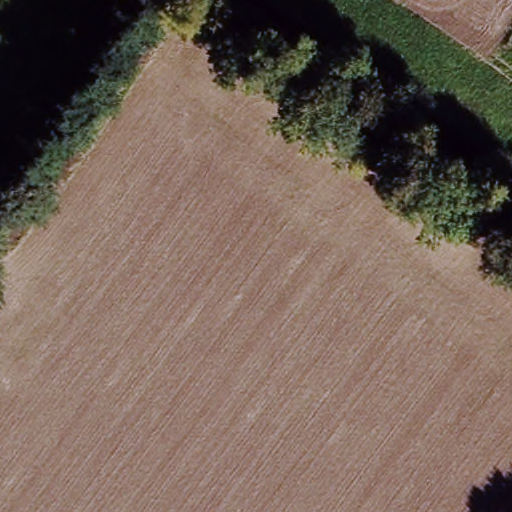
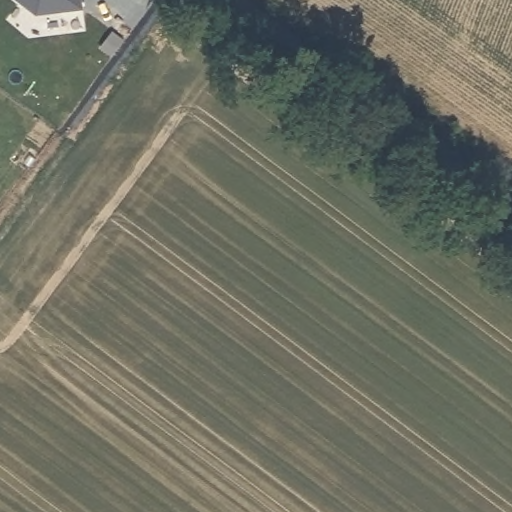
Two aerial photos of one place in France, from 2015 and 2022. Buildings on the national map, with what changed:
new [(85,10),(39,17),(17,0),(84,0),(85,10)]

